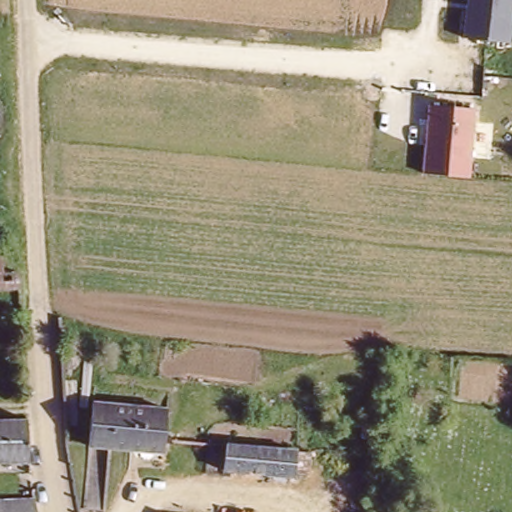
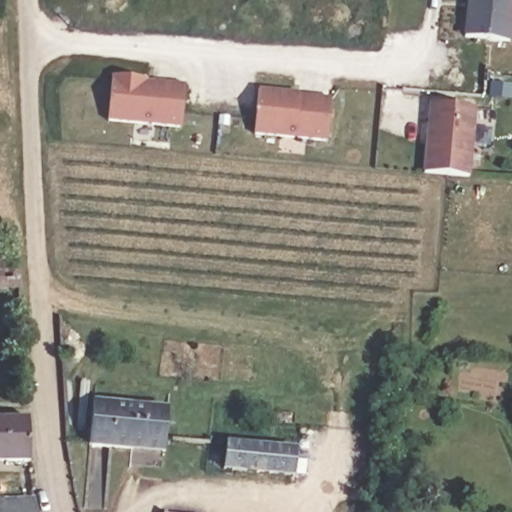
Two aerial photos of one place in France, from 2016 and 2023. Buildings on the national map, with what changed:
unchanged [(512,0),(512,25),(510,42),(467,41),(471,0),(512,0)]
new [(111,76),(147,80),(146,82),(184,86),(180,130),(106,122),(111,76)]
new [(258,90),(299,92),(298,96),(330,99),(326,142),(252,135),(258,90)]
unchanged [(475,107),(470,179),(425,175),(429,106),(475,107)]
unchanged [(8,260),(8,277),(25,277),(26,296),(0,297),(0,259),(8,260)]
unchanged [(173,400),(165,452),(91,443),(93,393),(173,400)]
unchanged [(31,420),(31,460),(0,460),(0,420),(31,420)]
unchanged [(229,445),(232,445),(304,450),(303,451),(303,452),(301,474),(230,467),(229,445)]
unchanged [(1,495),(36,492),(38,512),(0,512),(0,495),(1,495)]

